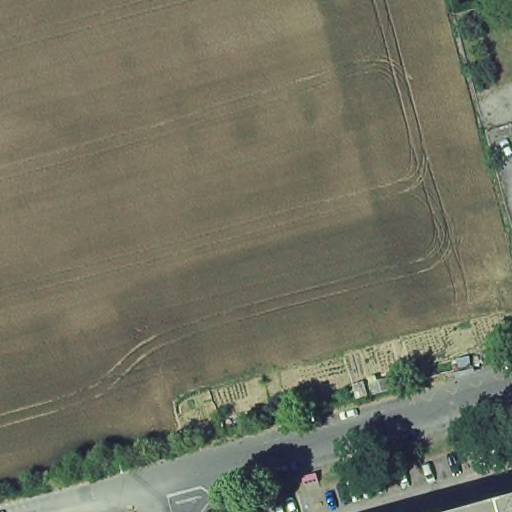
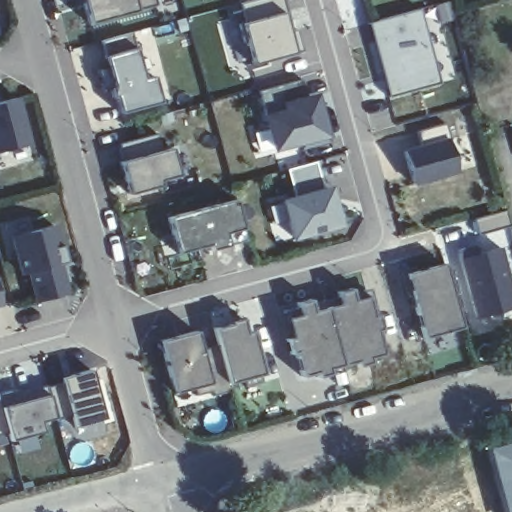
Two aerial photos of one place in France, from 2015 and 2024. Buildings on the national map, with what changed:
new [(91,22),(85,0),(155,0),(157,6),(91,22)]
new [(288,31),(297,29),(302,50),(252,64),(246,41),(243,41),(238,23),(244,22),(239,3),(250,0),(280,0),(288,31)]
new [(420,8),(420,9),(416,10),(436,83),(440,82),(440,83),(389,97),(388,96),(392,95),(372,22),(369,23),(368,22),(420,8)]
new [(159,102),(120,113),(116,97),(112,98),(109,89),(102,90),(97,70),(108,67),(105,56),(101,41),(131,33),(136,49),(144,79),(152,76),(159,102)]
new [(302,146),(301,141),(274,148),(257,90),(302,78),(309,105),(316,103),(326,139),(302,146)]
new [(29,143),(0,151),(0,102),(16,97),(29,143)]
new [(421,146),(416,131),(445,122),(450,139),(447,139),(457,171),(413,183),(404,151),(421,146)]
new [(180,175),(160,181),(160,185),(128,194),(119,162),(124,160),(120,143),(157,133),(162,149),(171,147),(180,175)]
new [(323,191),(329,190),(337,225),(294,237),(284,201),(295,198),(287,169),(315,161),(323,191)]
new [(228,246),(211,250),(210,244),(177,253),(167,218),(235,200),(242,227),(246,240),(228,246)]
new [(507,209),(511,226),(478,235),(473,219),(507,209)]
new [(59,246),(63,261),(63,262),(57,263),(66,292),(37,300),(29,271),(22,273),(12,236),(53,225),(59,246)]
new [(475,244),(477,253),(501,247),(508,275),(506,276),(512,300),(512,308),(475,317),(457,249),(475,244)]
new [(430,266),(430,268),(444,265),(462,327),(423,338),(414,306),(412,307),(412,306),(414,305),(411,295),(409,296),(409,295),(411,294),(405,273),(430,266)]
new [(297,307),(296,303),(310,299),(312,304),(338,296),(337,292),(351,288),(352,293),(366,289),(373,315),(377,314),(382,329),(377,331),(384,354),(370,358),(371,363),(357,367),(356,362),(329,369),(331,374),(317,378),(315,373),(301,377),(295,353),(290,354),(286,338),(291,337),(284,311),(297,307)]
new [(0,305),(0,298),(2,304),(0,305)]
new [(230,324),(230,321),(241,318),(245,333),(251,331),(262,373),(259,374),(261,381),(245,386),(244,379),(227,383),(220,352),(221,352),(214,328),(230,324)]
new [(196,330),(201,350),(199,350),(201,357),(220,352),(227,383),(230,390),(212,395),(211,391),(195,395),(193,387),(174,393),(159,340),(196,330)]
new [(59,418),(45,421),(47,437),(12,446),(0,403),(0,389),(47,378),(59,418)]
demolished [(457,437),(470,433),(472,440),(457,444),(457,437)]
new [(504,512),(485,447),(512,439),(512,512),(504,512)]
demolished [(383,457),(395,453),(397,460),(384,464),(383,457)]
demolished [(321,481),(307,484),(307,477),(320,474),(321,481)]
demolished [(468,512),(512,500),(512,512),(468,512)]

